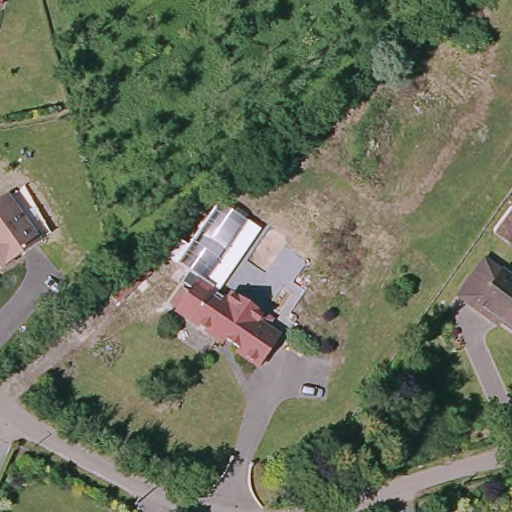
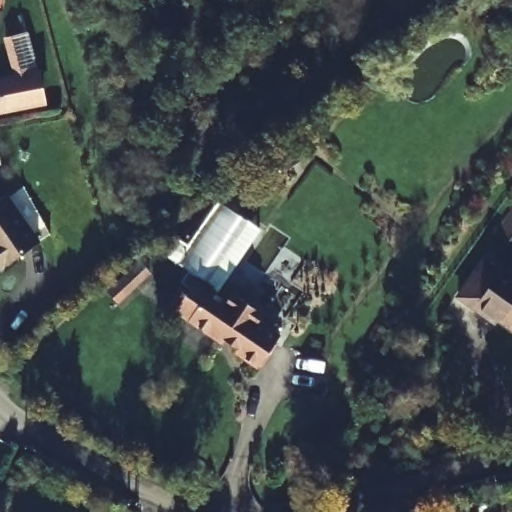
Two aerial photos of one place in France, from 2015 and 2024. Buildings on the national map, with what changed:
new [(13,77),(3,38),(28,33),(36,64),(19,68),(39,64),(47,102),(0,111),(0,80),(21,76),(13,77)]
unchanged [(3,192),(22,220),(34,240),(0,263),(0,194),(3,192)]
unchanged [(484,258),(512,277),(512,322),(494,310),(488,317),(454,296),(484,258)]
unchanged [(176,304),(201,274),(216,285),(213,288),(228,297),(232,291),(271,320),(266,326),(279,336),(258,363),(176,304)]
unchanged [(18,448),(15,456),(3,482),(0,489),(0,465),(9,444),(18,448)]

